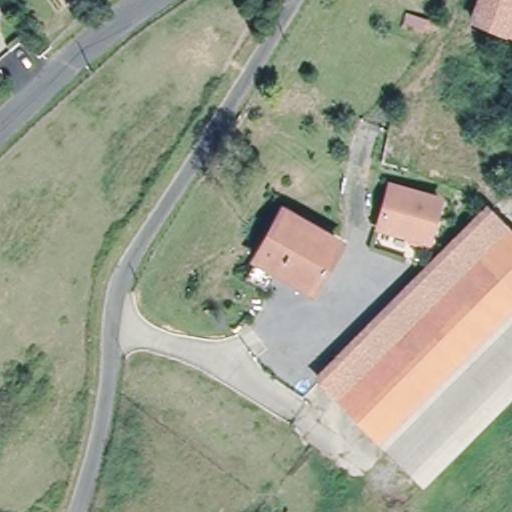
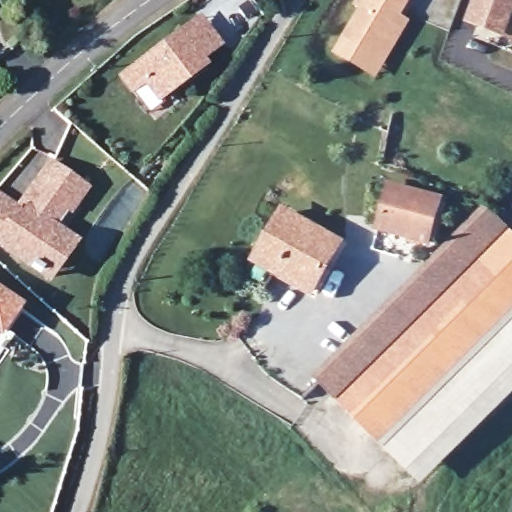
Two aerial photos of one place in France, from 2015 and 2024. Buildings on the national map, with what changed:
new [(413,21),(377,79),(334,51),(359,7),(353,4),(355,0),(412,0),(403,15),(413,21)]
unchanged [(472,20),(479,0),(512,0),(512,36),(472,20)]
new [(201,22),(209,32),(220,49),(202,63),(205,69),(159,103),(144,82),(132,90),(134,93),(133,94),(123,79),(182,35),(201,22)]
new [(38,275),(0,246),(0,203),(15,214),(21,206),(51,165),(54,166),(53,168),(81,190),(83,188),(85,190),(54,231),(56,234),(72,245),(46,280),(38,275)]
unchanged [(389,188),(439,202),(428,243),(377,229),(389,188)]
unchanged [(506,230),(463,272),(449,258),(446,255),(464,237),(489,213),(506,230)]
unchanged [(281,216),(338,247),(313,293),(255,261),(281,216)]
unchanged [(378,356),(463,272),(506,230),(512,236),(512,332),(389,451),(337,397),(378,356)]
unchanged [(449,258),(463,272),(378,356),(362,340),(385,316),(446,255),(449,258)]
new [(0,288),(23,305),(0,338),(0,288)]
unchanged [(512,332),(512,398),(426,488),(389,451),(512,332)]
unchanged [(320,380),(362,340),(378,356),(337,397),(320,380)]

